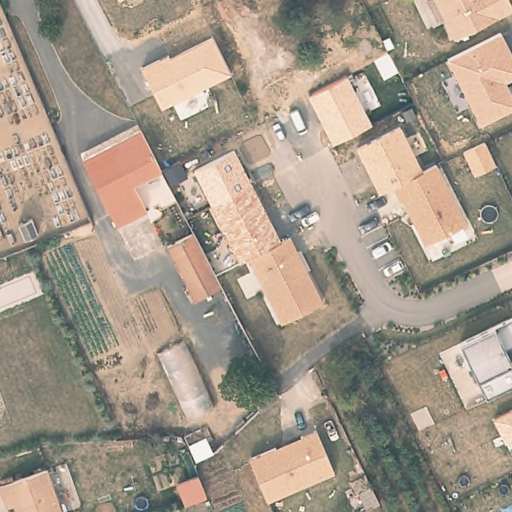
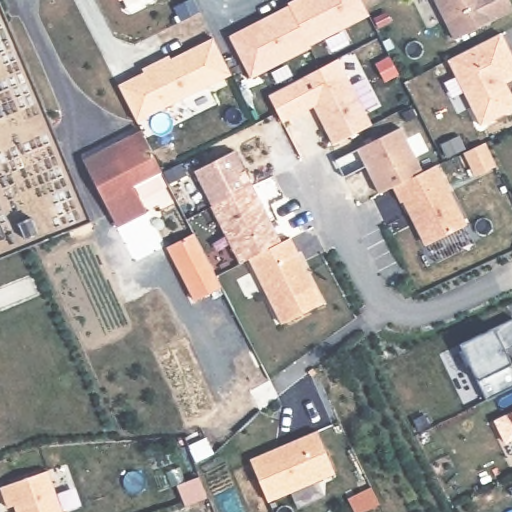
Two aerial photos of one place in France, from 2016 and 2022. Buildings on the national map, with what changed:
new [(286,1),(288,0),(362,0),(370,15),(310,44),(312,46),(250,78),(227,35),(287,3),(286,1)]
unchanged [(453,40),(433,0),(509,0),(512,7),(512,12),(453,40)]
unchanged [(512,56),(512,77),(505,80),(512,96),(512,108),(477,126),(444,61),(500,32),(512,56)]
unchanged [(214,37),(231,75),(137,123),(119,85),(214,37)]
new [(309,96),(313,106),(281,121),(267,94),(337,57),(347,77),(309,96)]
unchanged [(348,76),(372,125),(332,145),(309,96),(348,76)]
unchanged [(146,125),(167,166),(135,181),(150,210),(120,224),(115,220),(84,156),(146,125)]
unchanged [(380,194),(358,149),(401,126),(423,172),(392,188),(380,194)]
new [(483,140),(494,162),(474,173),(462,150),(483,140)]
unchanged [(239,263),(194,170),(235,150),(281,242),(249,259),(239,263)]
unchanged [(466,225),(425,245),(403,203),(400,205),(392,188),(436,166),(466,225)]
unchanged [(215,287),(189,301),(161,247),(188,234),(215,287)]
unchanged [(325,305),(282,326),(249,259),(291,237),(325,305)]
unchanged [(505,348),(510,360),(512,360),(512,385),(485,396),(460,343),(512,318),(512,345),(505,348)]
demolished [(180,342),(220,428),(198,439),(159,353),(180,342)]
demolished [(246,386),(269,375),(277,392),(268,398),(256,407),(246,386)]
unchanged [(510,411),(512,410),(512,416),(510,411)]
unchanged [(503,445),(493,420),(510,411),(512,416),(512,441),(503,445)]
unchanged [(317,430),(336,475),(268,503),(251,458),(317,430)]
unchanged [(6,507),(0,488),(0,487),(47,470),(61,512),(15,512),(13,505),(6,507)]

